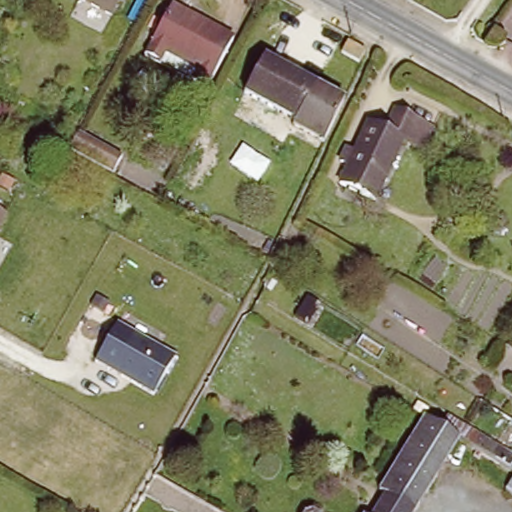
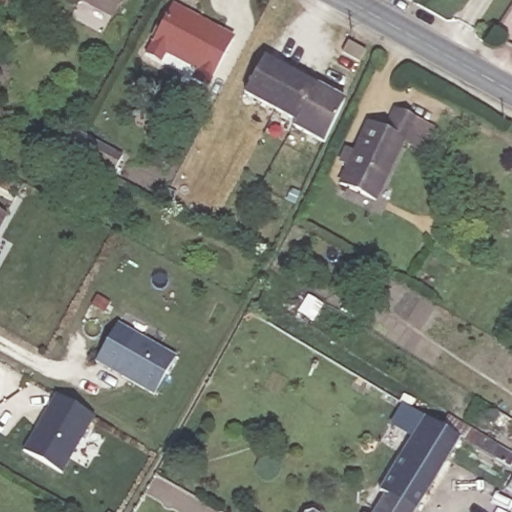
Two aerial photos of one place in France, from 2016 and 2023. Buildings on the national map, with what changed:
unchanged [(107,23),(76,7),(80,0),(119,0),(107,23)]
unchanged [(167,48),(160,61),(144,52),(172,2),(235,37),(207,87),(190,78),(197,64),(167,48)]
unchanged [(363,46),(358,58),(340,49),(346,37),(363,46)]
unchanged [(338,104),(322,137),(245,95),(265,61),(338,104)]
unchanged [(392,104),(436,124),(425,147),(406,139),(382,127),(392,104)]
unchanged [(371,122),(406,139),(375,200),(340,182),(371,122)]
unchanged [(117,152),(108,169),(65,146),(73,129),(117,152)]
unchanged [(0,227),(0,212),(7,215),(0,227)]
unchanged [(177,357),(153,396),(95,363),(117,325),(177,357)]
unchanged [(512,345),(512,371),(502,364),(510,350),(506,347),(508,343),(512,345)]
new [(60,474),(21,451),(55,394),(94,417),(60,474)]
unchanged [(382,488),(428,416),(455,432),(470,441),(477,430),(512,452),(512,467),(496,457),(487,472),(455,452),(417,512),(375,512),(388,492),(382,488)]
unchanged [(510,490),(512,487),(512,491),(510,490)]

